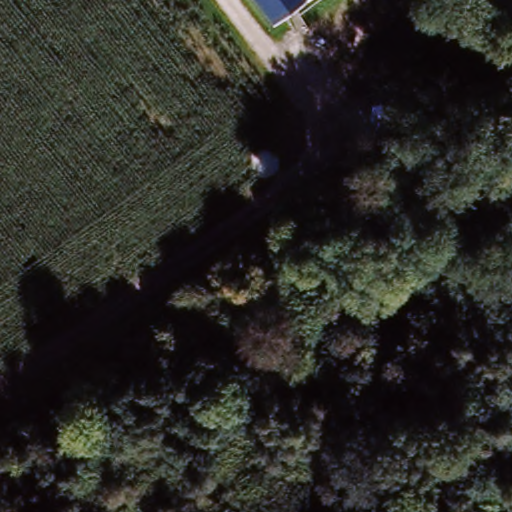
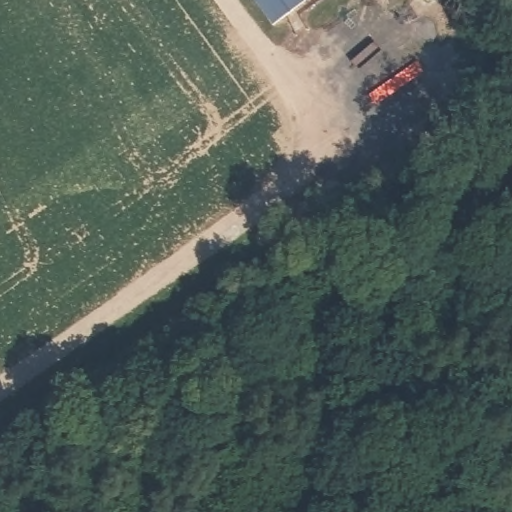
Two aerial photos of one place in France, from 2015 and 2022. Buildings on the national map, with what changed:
unchanged [(304,0),(273,24),(255,0),(304,0)]

